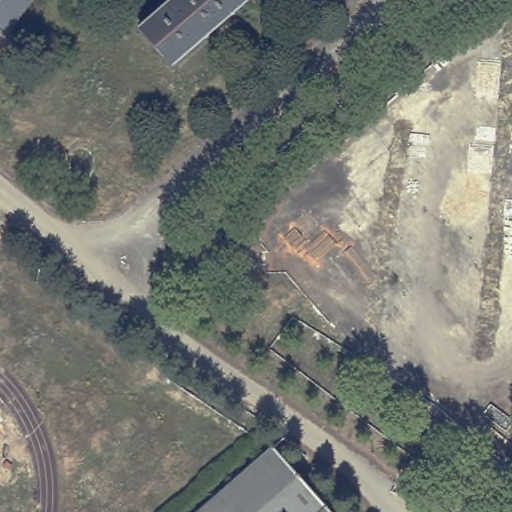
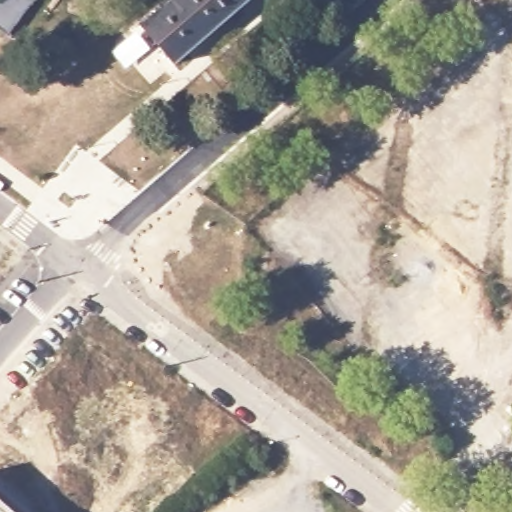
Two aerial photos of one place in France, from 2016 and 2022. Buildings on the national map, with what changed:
unchanged [(5,33),(0,30),(0,0),(32,0),(29,4),(10,29),(18,35),(15,40),(7,33),(5,33)]
unchanged [(139,27),(170,0),(247,0),(172,65),(139,27)]
demolished [(7,61),(0,72),(0,56),(7,61)]
demolished [(333,512),(194,512),(273,443),(333,512)]
new [(6,512),(0,512),(0,507),(6,512)]

